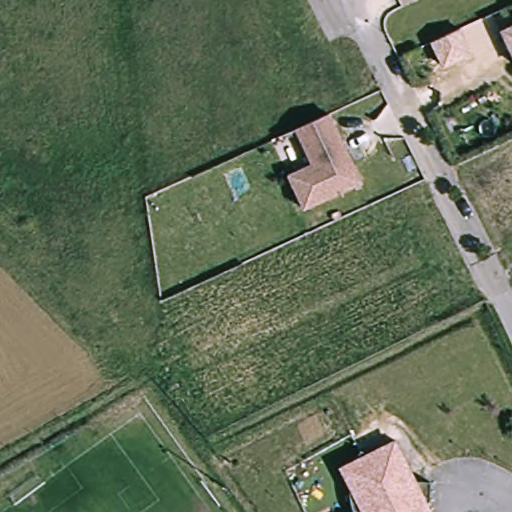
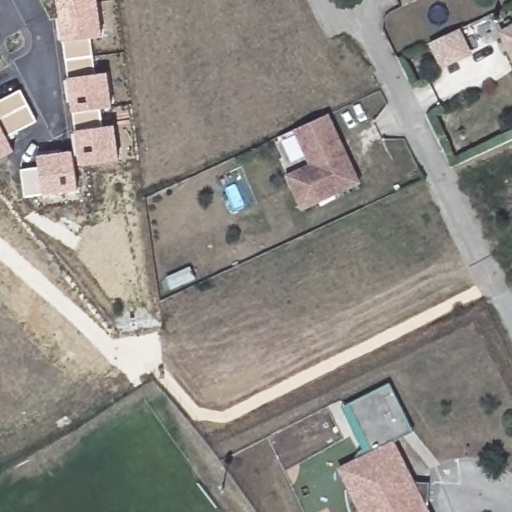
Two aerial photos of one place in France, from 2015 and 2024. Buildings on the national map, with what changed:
new [(97,74),(108,72),(113,106),(101,108),(104,127),(115,125),(120,160),(79,166),(55,0),(97,0),(103,35),(92,37),(97,74)]
unchanged [(512,24),(512,56),(500,30),(512,24)]
new [(459,29),(470,53),(443,65),(432,41),(459,29)]
new [(0,99),(20,89),(37,120),(7,137),(15,151),(0,158),(0,99)]
unchanged [(327,114),(359,184),(301,210),(286,177),(311,165),(294,129),(327,114)]
new [(44,195),(25,197),(22,169),(40,166),(38,155),(73,150),(78,190),(44,195)]
new [(348,403),(389,382),(412,431),(393,442),(372,452),(348,403)]
unchanged [(347,503),(345,494),(345,486),(345,482),(338,469),(353,461),(355,458),(359,455),(366,455),(393,442),(413,481),(429,482),(428,510),(429,512),(350,512),(349,510),(347,503)]

